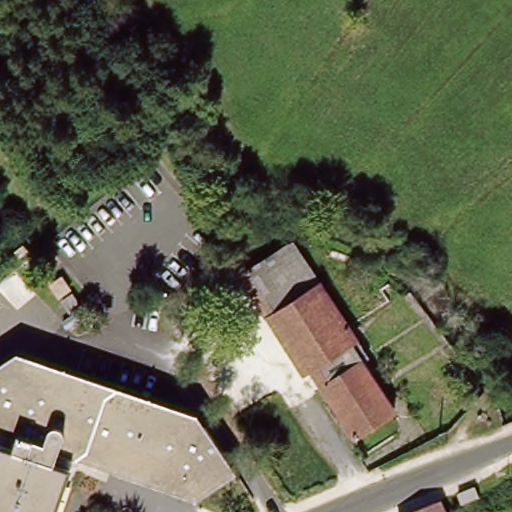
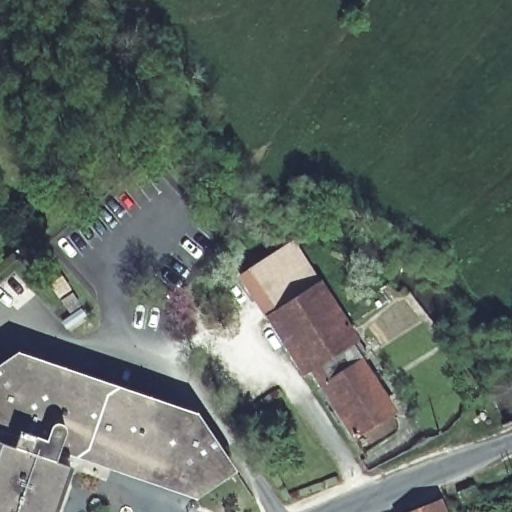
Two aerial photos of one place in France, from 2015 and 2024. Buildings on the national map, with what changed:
unchanged [(369,355),(364,357),(395,407),(355,433),(312,367),(307,370),(244,274),(295,243),(369,355)]
unchanged [(0,449),(2,443),(14,447),(17,440),(17,433),(11,428),(4,425),(0,423),(0,368),(16,356),(211,425),(231,456),(194,479),(191,484),(65,440),(56,463),(71,468),(57,508),(62,510),(62,512),(0,512),(0,449)]
unchanged [(436,500),(441,512),(404,512),(436,500)]

